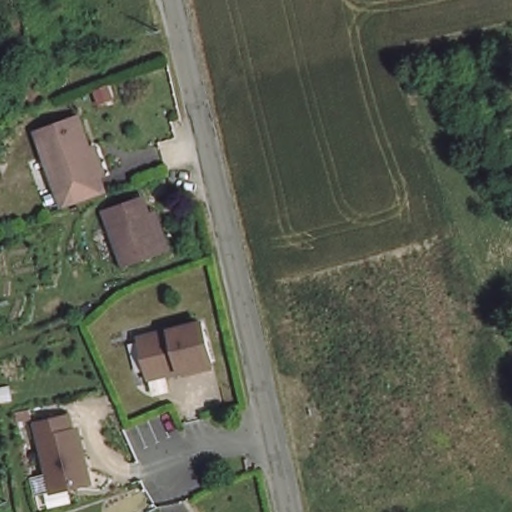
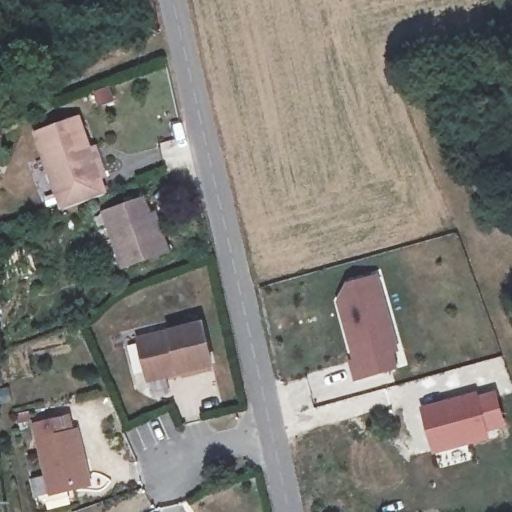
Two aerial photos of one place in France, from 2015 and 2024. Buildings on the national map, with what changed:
unchanged [(77,109),(88,141),(93,139),(103,167),(97,169),(104,185),(62,200),(34,123),(77,109)]
unchanged [(120,259),(101,202),(140,190),(146,207),(151,205),(156,222),(164,244),(120,259)]
new [(399,351),(394,352),(397,368),(352,381),(347,360),(351,358),(335,301),(347,280),(353,278),(377,272),(399,351)]
unchanged [(145,368),(137,333),(200,319),(210,359),(177,366),(146,373),(145,368)]
new [(475,391),(477,396),(495,390),(505,425),(488,430),(490,438),(432,453),(420,407),(475,391)]
unchanged [(55,483),(37,415),(70,407),(74,421),(78,420),(92,474),(55,483)]

